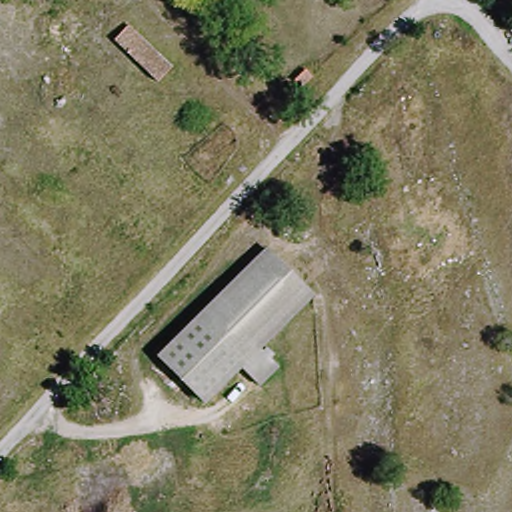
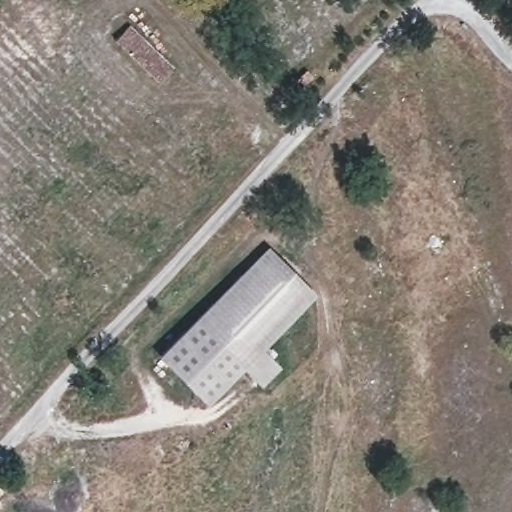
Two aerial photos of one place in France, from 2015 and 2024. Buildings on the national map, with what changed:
unchanged [(114,39),(130,24),(172,63),(155,78),(114,39)]
unchanged [(263,385),(242,368),(207,403),(156,352),(267,246),(317,292),(263,348),(281,365),(263,385)]

